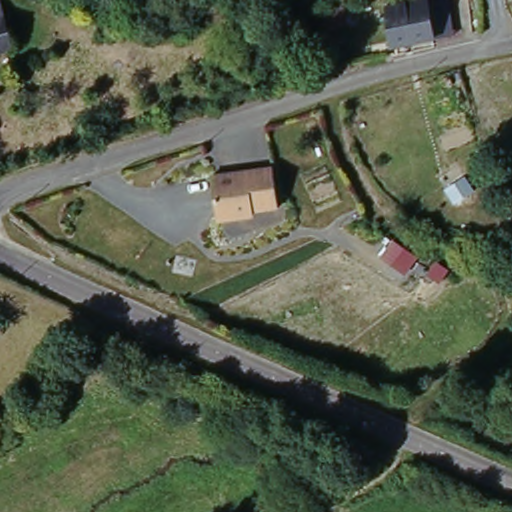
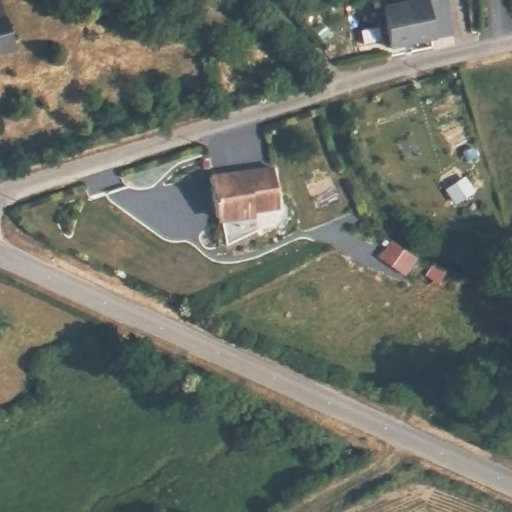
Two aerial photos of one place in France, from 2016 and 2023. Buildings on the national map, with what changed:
unchanged [(387,9),(426,0),(429,0),(438,41),(395,50),(387,9)]
unchanged [(0,10),(4,9),(8,25),(16,54),(0,58),(0,10)]
unchanged [(272,172),(278,212),(252,215),(248,221),(221,224),(216,220),(210,181),(272,172)]

